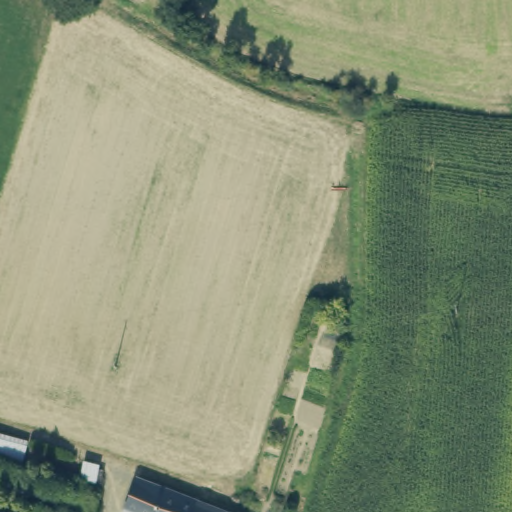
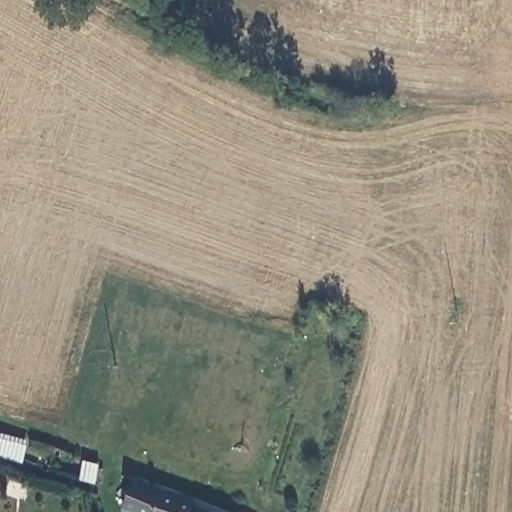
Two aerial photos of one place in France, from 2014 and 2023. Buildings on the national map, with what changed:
unchanged [(20,465),(0,460),(0,441),(25,448),(20,465)]
unchanged [(96,465),(95,471),(102,473),(99,485),(80,481),(84,462),(96,465)]
unchanged [(140,481),(220,512),(127,512),(140,481)]

